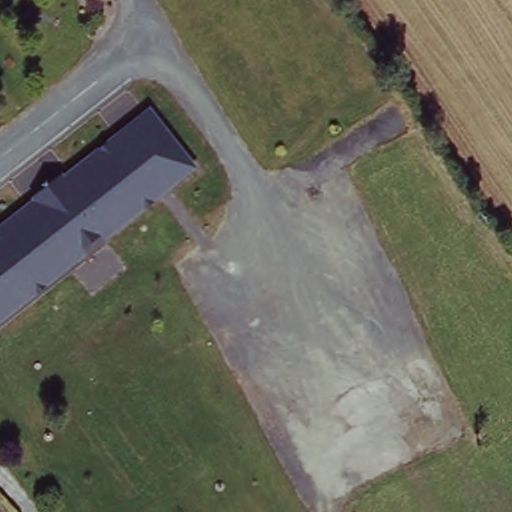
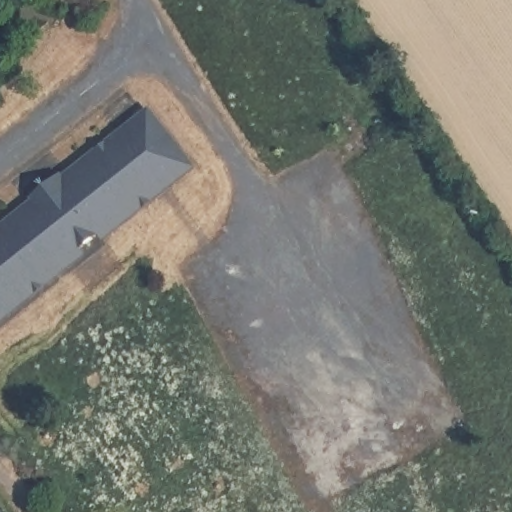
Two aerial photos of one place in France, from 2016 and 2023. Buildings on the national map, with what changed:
unchanged [(32,195),(61,170),(67,178),(148,117),(186,166),(105,229),(77,252),(0,312),(0,233),(36,202),(32,195)]

